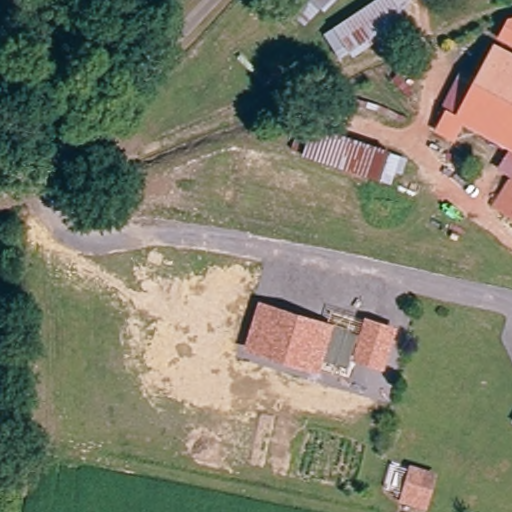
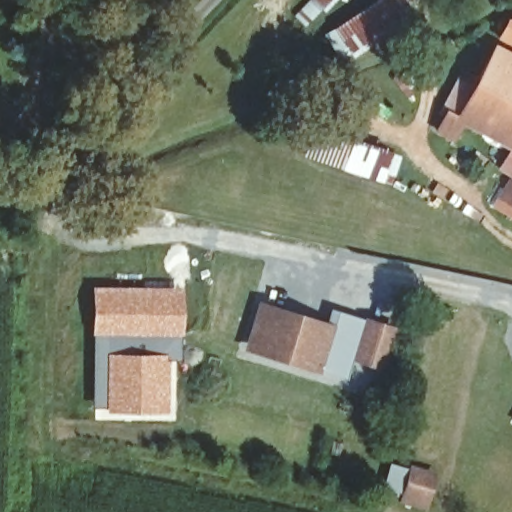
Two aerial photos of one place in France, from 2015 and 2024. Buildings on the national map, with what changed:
unchanged [(376,0),(411,0),(400,8),(409,21),(342,65),(320,37),(376,0)]
unchanged [(503,19),(512,16),(512,44),(499,36),(503,19)]
unchanged [(456,112),(467,90),(492,39),(512,50),(512,147),(467,119),(456,112)]
unchanged [(467,90),(456,112),(467,119),(455,141),(430,126),(452,82),(467,90)]
unchanged [(380,179),(306,159),(313,130),(386,151),(380,179)]
unchanged [(512,147),(512,217),(503,211),(486,200),(497,177),(512,147)]
new [(90,285),(181,287),(181,336),(168,336),(90,334),(90,285)]
unchanged [(327,322),(332,307),(399,328),(384,371),(350,358),(347,367),(324,359),(319,372),(244,348),(258,301),(327,322)]
new [(168,336),(170,352),(175,352),(170,415),(104,415),(104,411),(92,411),(90,334),(168,336)]
unchanged [(437,472),(427,510),(397,501),(409,463),(437,472)]

